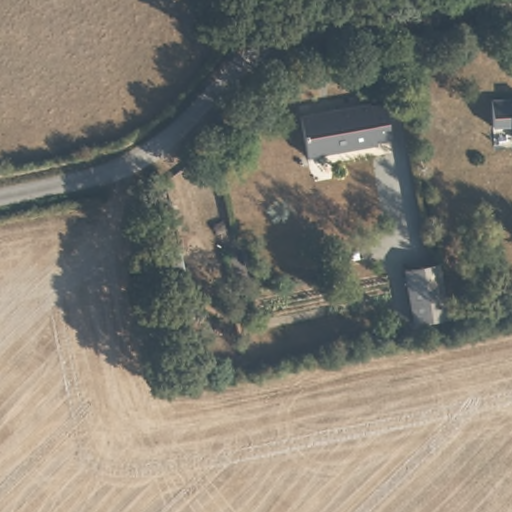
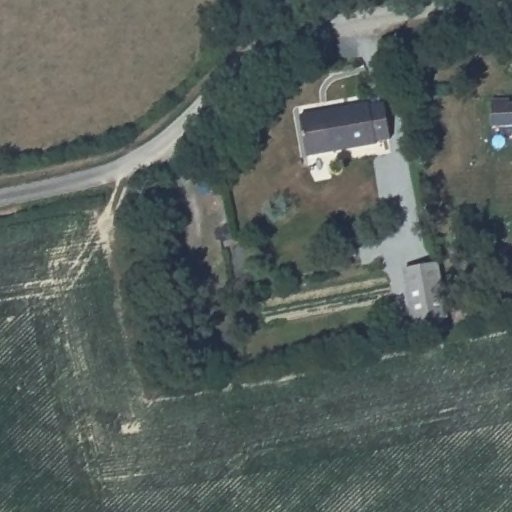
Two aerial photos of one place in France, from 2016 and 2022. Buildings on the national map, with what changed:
unchanged [(512,122),(492,122),(492,99),(512,99),(512,122)]
unchanged [(372,143),(372,148),(308,149),(309,113),(336,112),(336,106),(370,106),(370,111),(384,111),(384,143),(372,143)]
unchanged [(412,322),(403,270),(437,263),(447,315),(412,322)]

